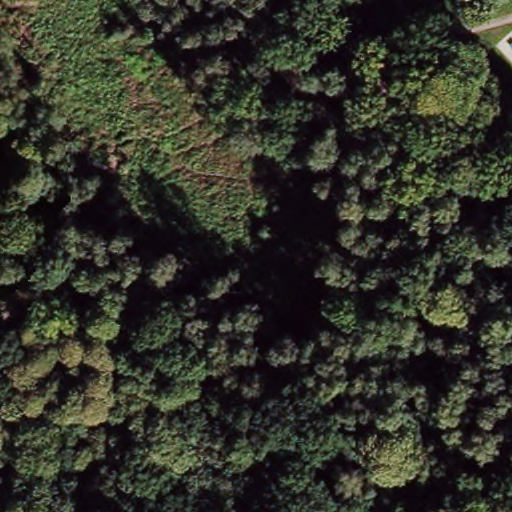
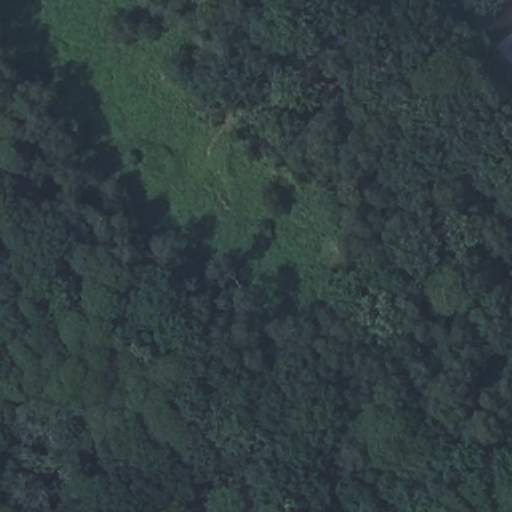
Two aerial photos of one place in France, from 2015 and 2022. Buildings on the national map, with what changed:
unchanged [(362,26),(391,59),(367,80),(338,48),(362,26)]

